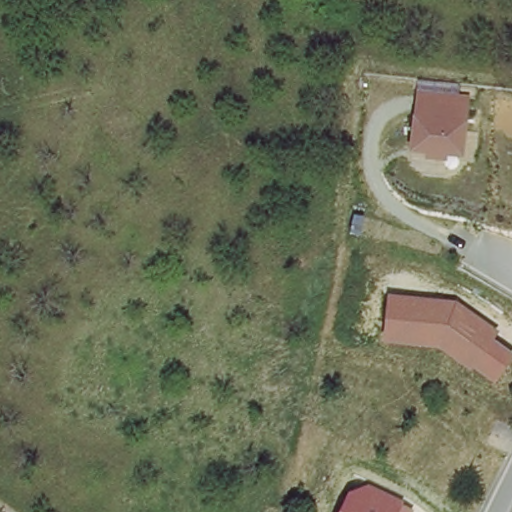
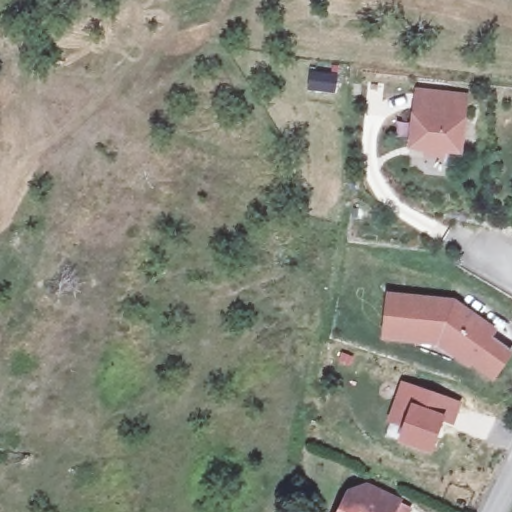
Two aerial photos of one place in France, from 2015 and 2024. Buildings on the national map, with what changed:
unchanged [(411,150),(412,115),(415,89),(467,96),(465,124),(463,157),(411,150)]
unchanged [(454,297),(498,329),(493,336),(512,350),(512,356),(494,381),(475,366),(472,370),(439,349),(385,343),(387,292),(454,297)]
new [(461,405),(454,428),(439,424),(429,452),(387,435),(404,386),(461,405)]
unchanged [(369,483),(403,496),(401,503),(414,509),(413,512),(338,512),(348,490),(369,483)]

